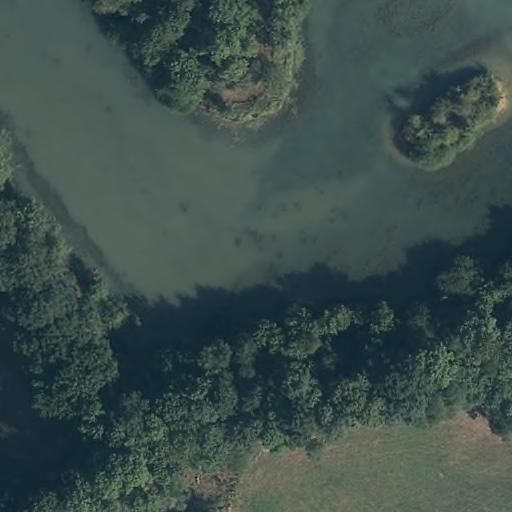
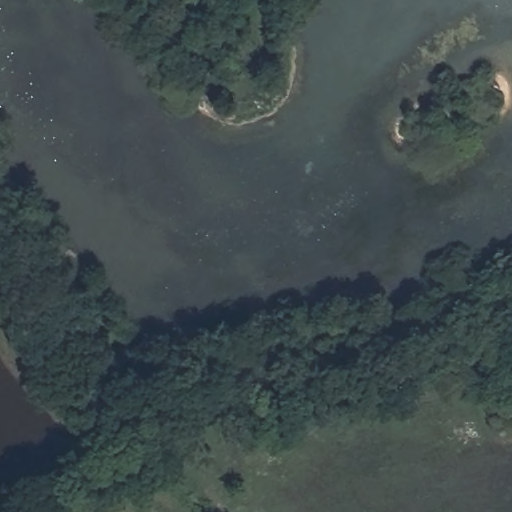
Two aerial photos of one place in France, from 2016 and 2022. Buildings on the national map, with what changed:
unchanged [(447,109),(453,118),(442,124),(436,115),(447,109)]

